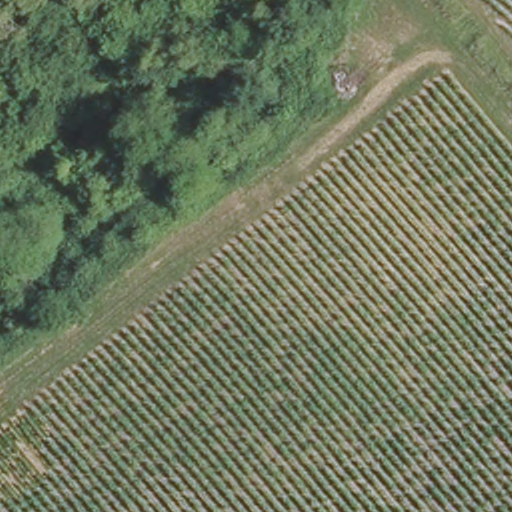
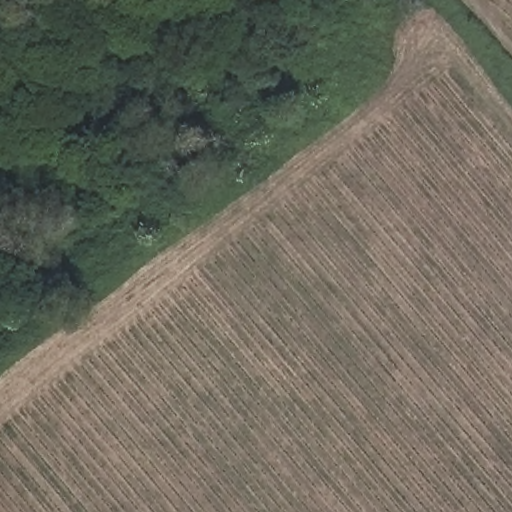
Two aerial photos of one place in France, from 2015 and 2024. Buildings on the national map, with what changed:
[]

